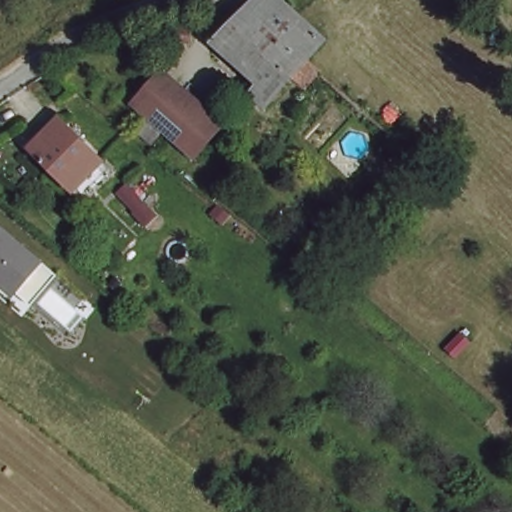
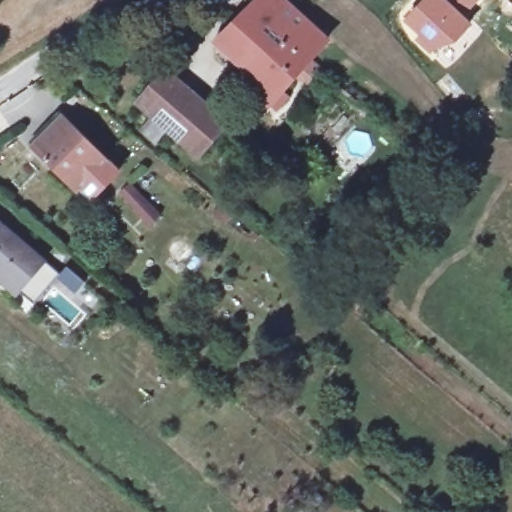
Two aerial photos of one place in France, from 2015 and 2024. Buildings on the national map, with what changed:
unchanged [(300,92),(290,80),(264,111),(250,99),(262,86),(215,42),(259,0),(274,0),(323,43),(305,64),(317,75),(300,92)]
new [(465,14),(473,22),(454,41),(432,56),(413,39),(417,35),(402,19),(420,0),(478,0),(465,14)]
unchanged [(225,124),(198,155),(135,101),(162,70),(225,124)]
unchanged [(83,195),(70,184),(67,187),(22,144),(51,115),(95,158),(109,170),(83,195)]
unchanged [(161,212),(148,225),(140,216),(130,222),(110,201),(131,181),(161,212)]
unchanged [(62,271),(31,308),(0,282),(0,220),(62,271)]

